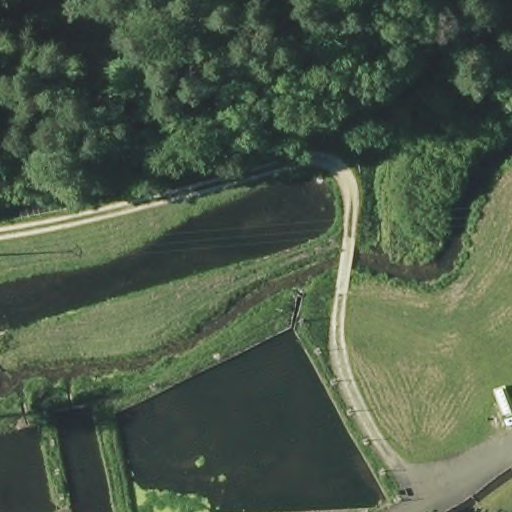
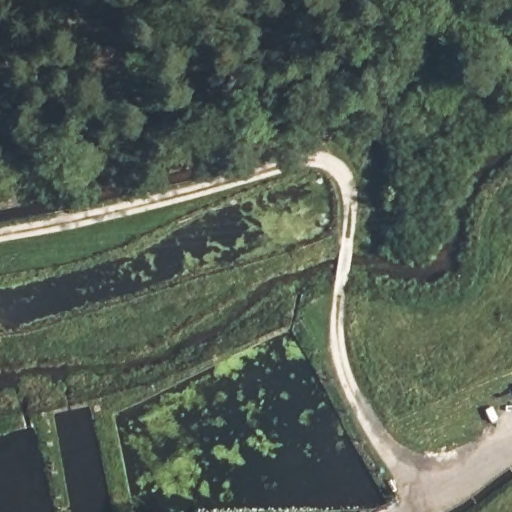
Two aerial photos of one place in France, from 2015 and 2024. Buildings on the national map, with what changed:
[]

